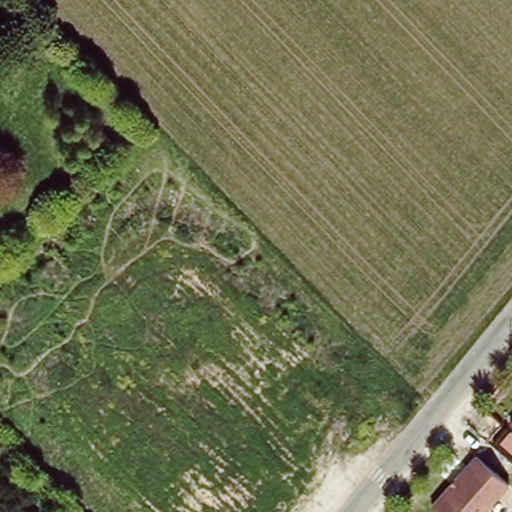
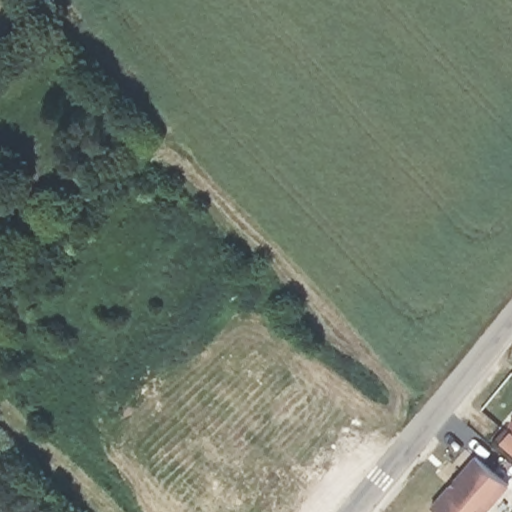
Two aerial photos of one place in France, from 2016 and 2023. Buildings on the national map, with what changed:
unchanged [(508,424),(512,419),(512,428),(508,424)]
unchanged [(509,483),(485,512),(438,512),(433,507),(476,456),(509,483)]

